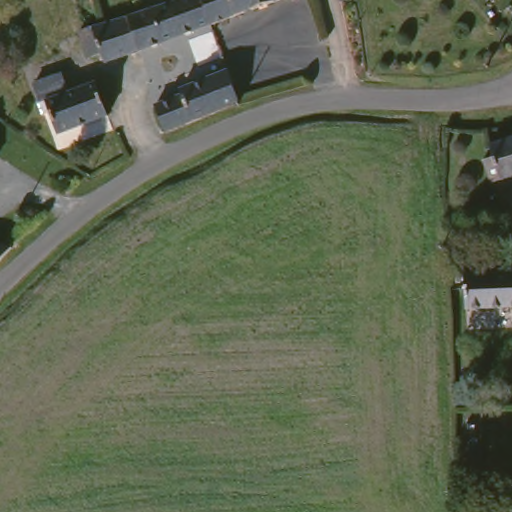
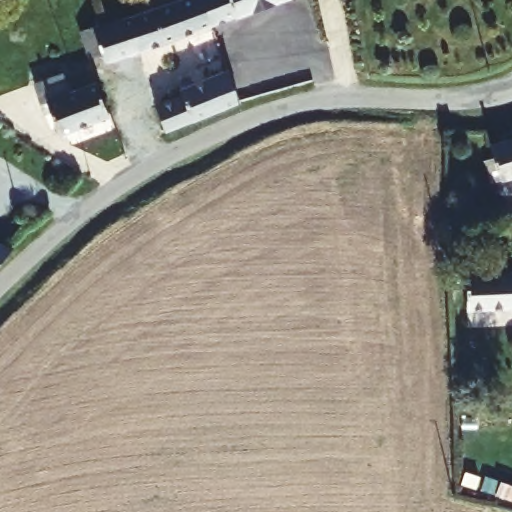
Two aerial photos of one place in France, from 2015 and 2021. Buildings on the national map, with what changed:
unchanged [(107,60),(103,50),(90,54),(81,30),(168,0),(209,0),(217,22),(107,60)]
unchanged [(209,0),(281,0),(217,22),(209,0)]
unchanged [(183,81),(181,76),(229,59),(246,100),(245,100),(174,133),(159,90),(183,81)]
unchanged [(110,114),(61,130),(50,98),(42,100),(36,81),(64,71),(70,90),(98,81),(110,114)]
unchanged [(512,136),(512,170),(486,177),(482,162),(490,159),(487,142),(512,136)]
unchanged [(3,242),(7,243),(0,250),(0,241),(3,242)]
unchanged [(472,294),(458,294),(458,271),(471,272),(512,270),(512,303),(472,304),(472,294)]

